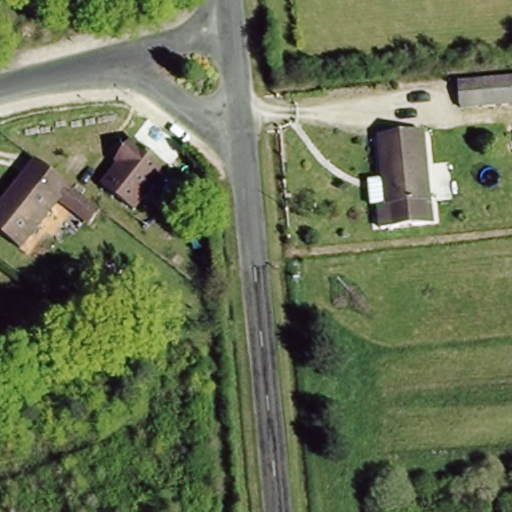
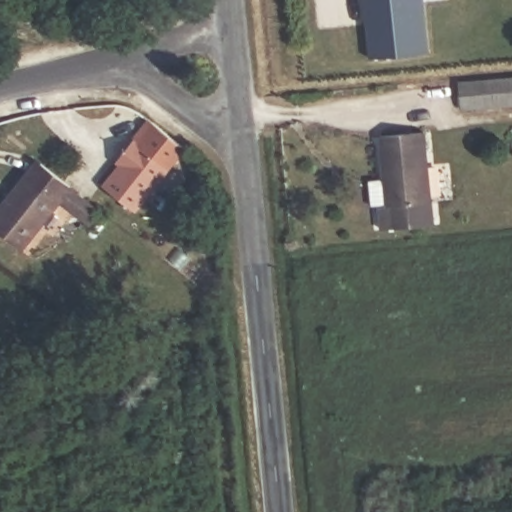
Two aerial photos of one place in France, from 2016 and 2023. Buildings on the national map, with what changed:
new [(369,57),(364,0),(422,0),(427,52),(369,57)]
unchanged [(512,73),(512,98),(480,101),(477,77),(512,73)]
unchanged [(378,130),(425,125),(435,221),(389,226),(378,130)]
unchanged [(121,161),(117,159),(120,154),(134,136),(168,164),(135,206),(105,182),(121,161)]
unchanged [(96,210),(86,221),(55,197),(15,245),(0,233),(0,203),(11,188),(34,160),(38,162),(66,184),(65,185),(96,210)]

